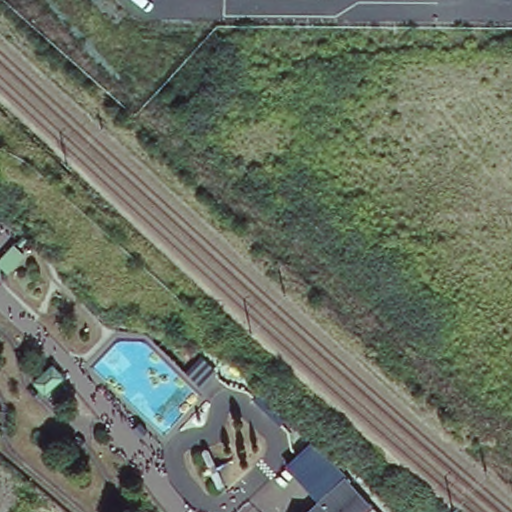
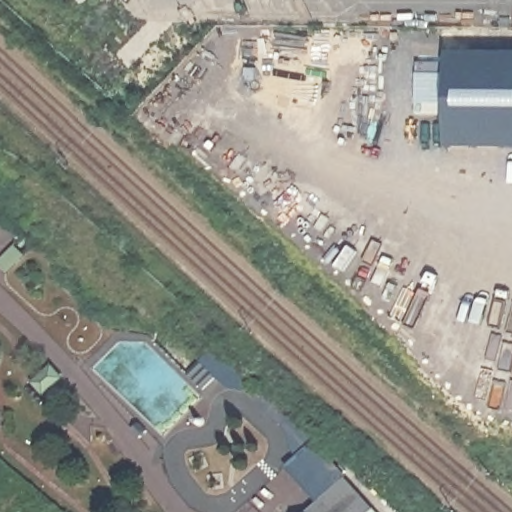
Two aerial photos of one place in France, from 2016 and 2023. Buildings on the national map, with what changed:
new [(512,56),(512,139),(438,139),(438,57),(512,56)]
new [(54,368),(66,381),(46,400),(33,386),(54,368)]
unchanged [(307,512),(318,502),(286,465),(317,440),(378,512),(307,512)]

